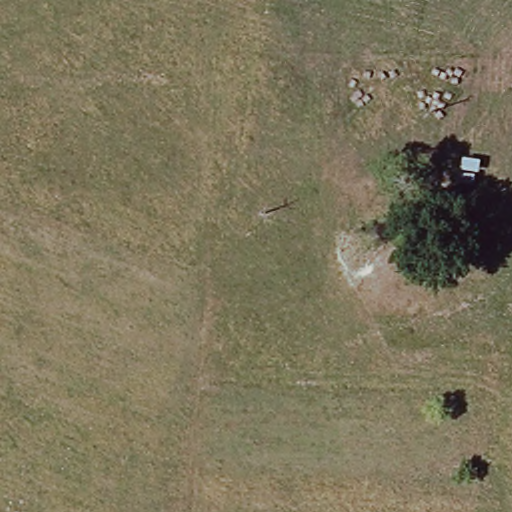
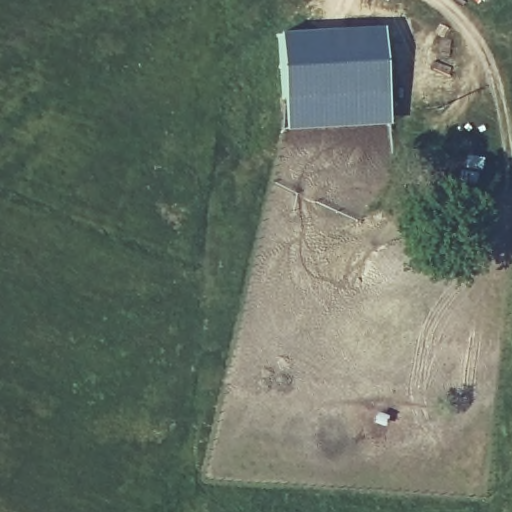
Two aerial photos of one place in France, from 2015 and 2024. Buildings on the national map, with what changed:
new [(276,33),(381,28),(384,93),(279,98),(276,33)]

